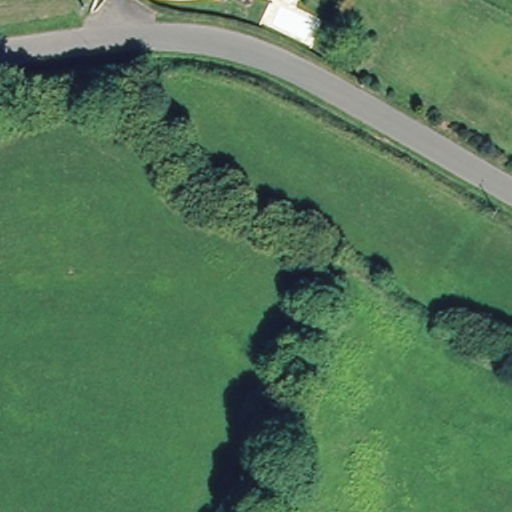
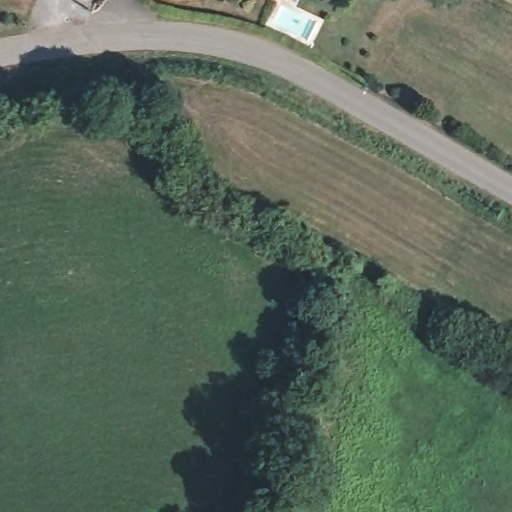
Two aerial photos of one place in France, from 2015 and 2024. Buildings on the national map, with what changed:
[]

